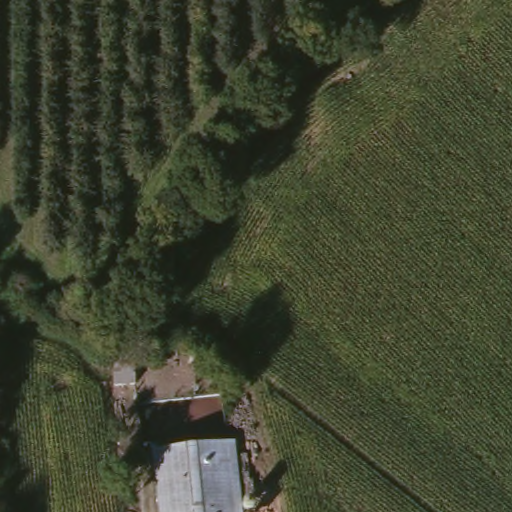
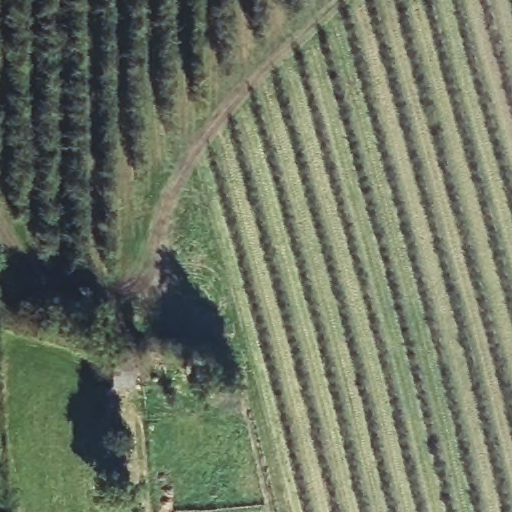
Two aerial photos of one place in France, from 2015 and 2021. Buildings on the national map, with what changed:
demolished [(114,336),(125,336),(135,335),(138,371),(127,371),(116,372),(114,336)]
new [(114,358),(125,358),(135,358),(138,393),(127,394),(116,395),(114,358)]
demolished [(155,451),(232,445),(238,512),(160,512),(155,451)]

